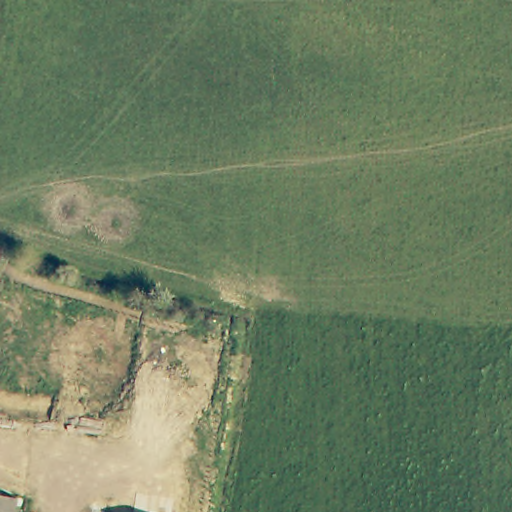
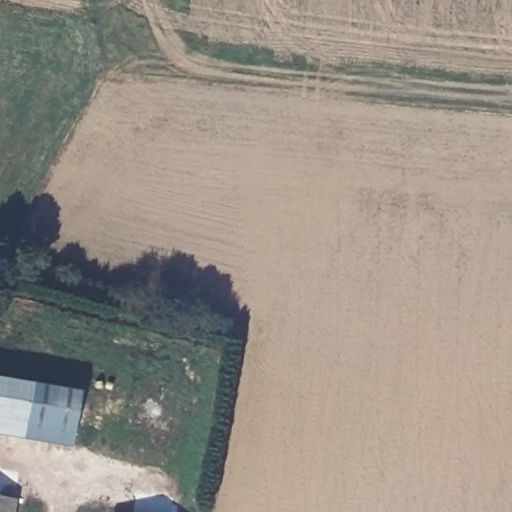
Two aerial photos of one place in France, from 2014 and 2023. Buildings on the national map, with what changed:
new [(84,401),(77,441),(0,428),(0,386),(84,401)]
unchanged [(17,501),(15,512),(0,512),(0,498),(17,501)]

